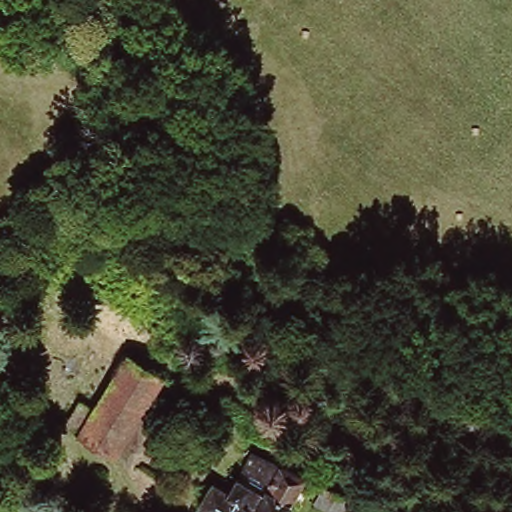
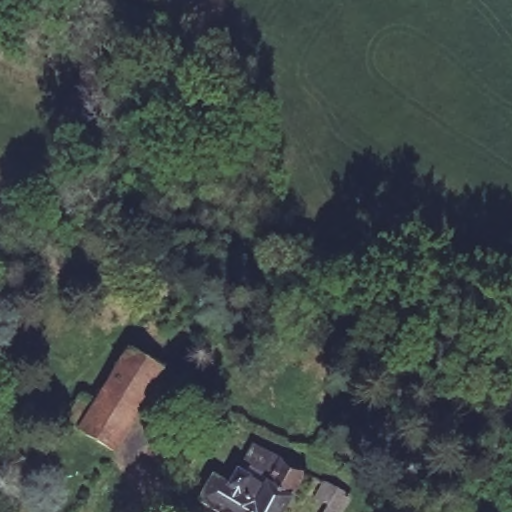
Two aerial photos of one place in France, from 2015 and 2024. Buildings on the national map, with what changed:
unchanged [(89,290),(47,262),(59,244),(101,272),(89,290)]
unchanged [(70,422),(86,396),(102,405),(134,352),(168,373),(120,452),(70,422)]
unchanged [(244,472),(254,478),(260,468),(249,462),(259,446),(310,475),(288,512),(225,512),(205,501),(218,477),(236,487),(244,472)]
unchanged [(329,504),(317,497),(324,483),(349,497),(340,512),(325,512),(329,504)]

